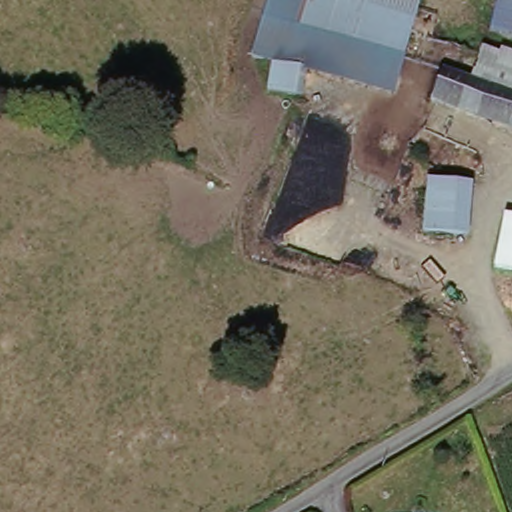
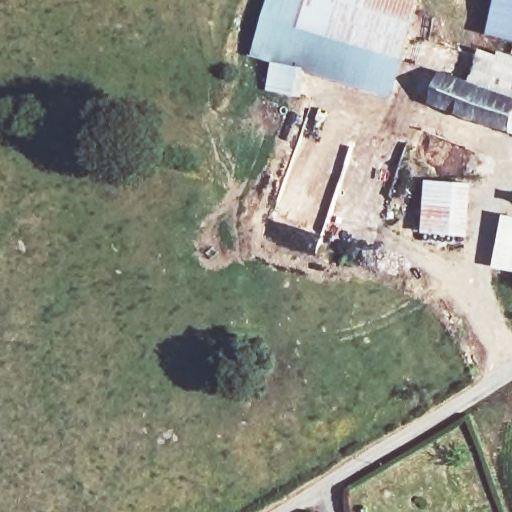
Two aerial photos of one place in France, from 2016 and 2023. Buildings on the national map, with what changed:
unchanged [(309,71),(302,94),(267,85),(273,63),(252,55),(268,0),(424,0),(396,95),(309,71)]
unchanged [(499,34),(507,0),(512,0),(512,37),(499,34)]
unchanged [(493,83),(504,49),(512,51),(512,129),(433,104),(443,69),(493,83)]
unchanged [(424,234),(429,181),(474,186),(469,239),(424,234)]
unchanged [(512,221),(512,276),(494,272),(504,220),(512,221)]

